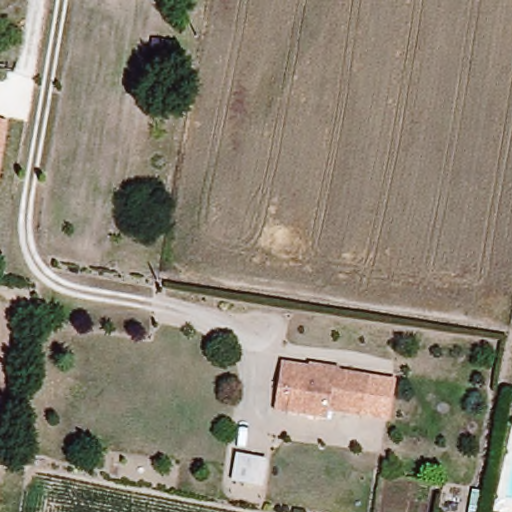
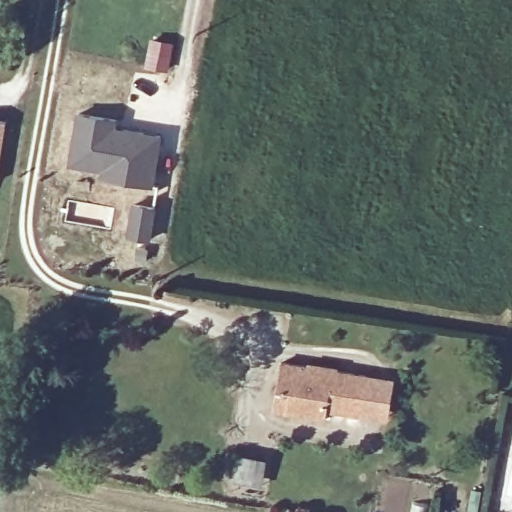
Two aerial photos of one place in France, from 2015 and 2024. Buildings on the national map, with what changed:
unchanged [(163,75),(143,73),(146,45),(166,47),(163,75)]
new [(76,111),(117,117),(117,125),(162,134),(154,186),(100,177),(99,171),(65,165),(76,111)]
unchanged [(6,122),(0,162),(0,121),(6,122)]
new [(130,202),(156,206),(145,263),(133,261),(136,240),(124,238),(130,202)]
unchanged [(277,390),(281,363),(310,366),(338,368),(337,373),(369,377),(364,415),(330,412),(329,421),(289,415),(274,413),(277,390)]
unchanged [(395,380),(389,420),(364,415),(369,377),(395,380)]
unchanged [(262,491),(241,488),(233,487),(236,461),(245,462),(267,465),(262,491)]

